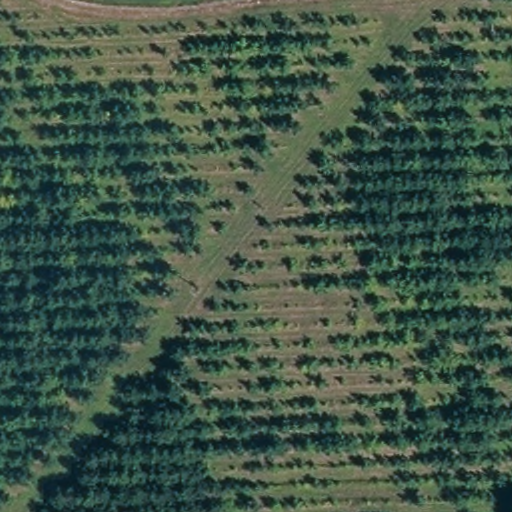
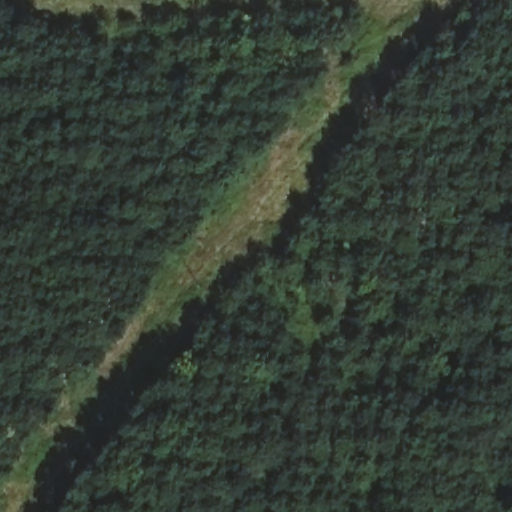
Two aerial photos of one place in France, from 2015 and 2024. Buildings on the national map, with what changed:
[]

